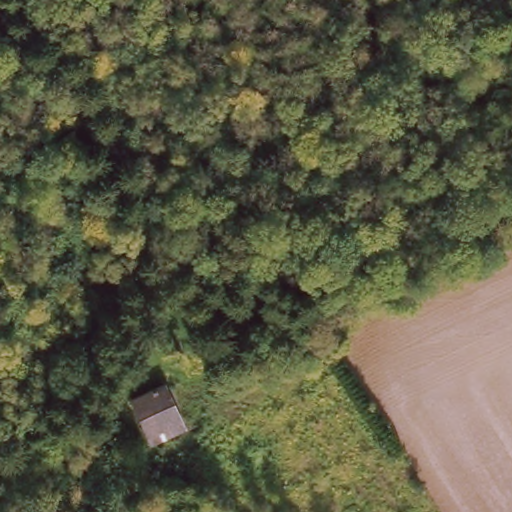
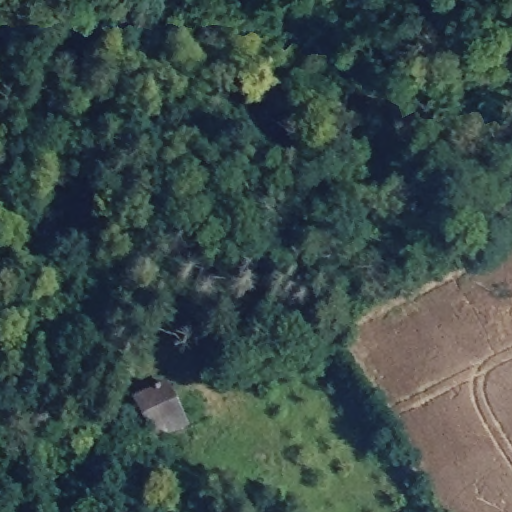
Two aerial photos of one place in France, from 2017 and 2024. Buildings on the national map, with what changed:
unchanged [(168,399),(180,425),(148,440),(135,412),(168,399)]

